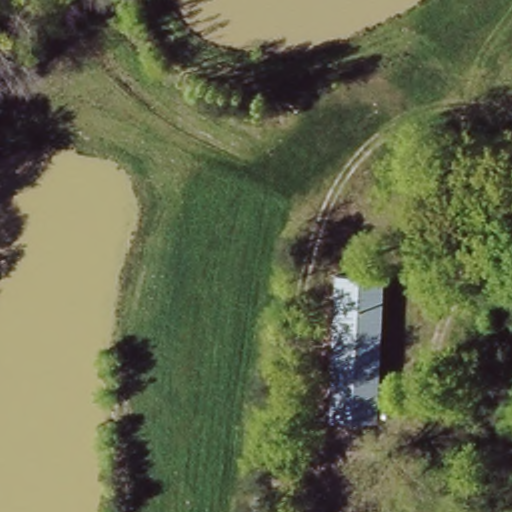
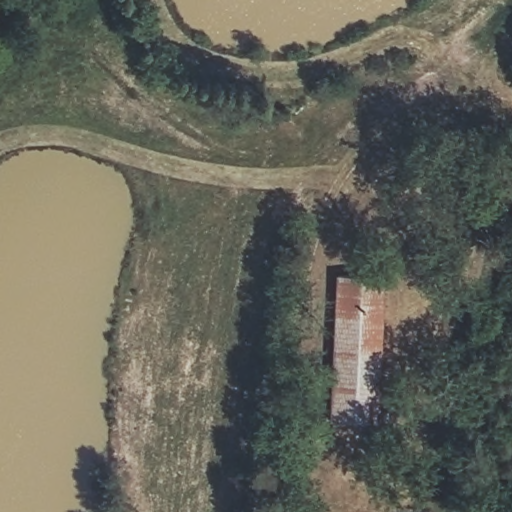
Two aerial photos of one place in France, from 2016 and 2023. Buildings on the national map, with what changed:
unchanged [(385,276),(378,420),(330,418),(336,274),(385,276)]

